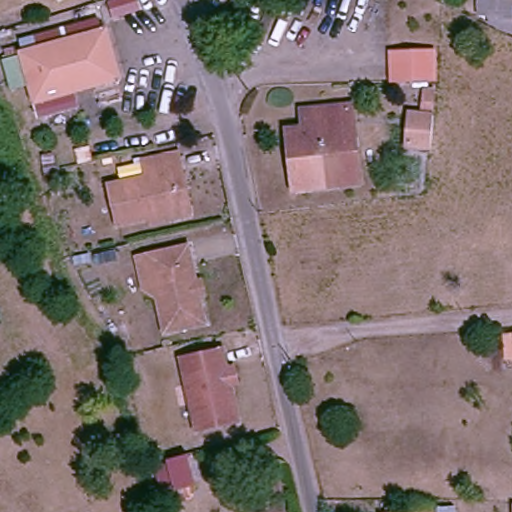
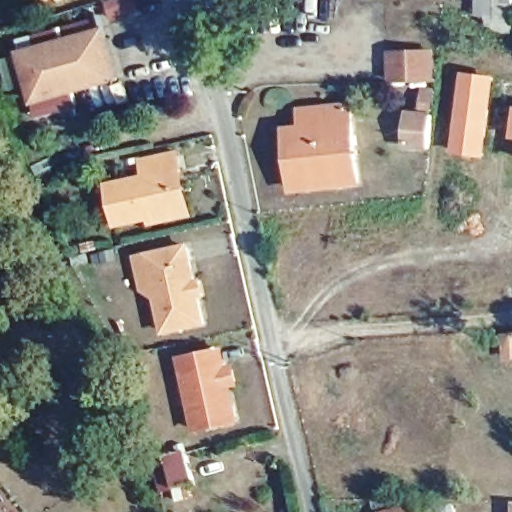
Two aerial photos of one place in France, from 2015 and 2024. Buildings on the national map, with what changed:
unchanged [(476,17),(476,0),(506,0),(506,18),(476,17)]
unchanged [(7,60),(26,55),(25,53),(27,51),(24,40),(83,24),(87,35),(109,29),(123,80),(39,103),(34,86),(15,91),(7,60)]
unchanged [(403,54),(412,54),(432,53),(432,78),(412,78),(404,78),(403,54)]
new [(460,70),(494,75),(482,158),(452,154),(460,70)]
unchanged [(409,114),(421,115),(424,90),(434,91),(431,116),(433,117),(432,125),(430,150),(406,148),(409,114)]
unchanged [(311,111),(352,106),(360,174),(303,181),(301,166),(309,165),(308,153),(316,151),(311,111)]
new [(512,139),(510,139),(512,125),(512,139)]
unchanged [(187,149),(191,164),(185,165),(195,205),(161,213),(128,220),(119,182),(156,173),(153,158),(152,156),(156,155),(187,149)]
unchanged [(191,243),(209,318),(170,328),(152,252),(191,243)]
unchanged [(512,331),(512,352),(501,353),(500,332),(512,331)]
unchanged [(242,412),(201,421),(186,350),(227,341),(234,376),(242,412)]
unchanged [(181,451),(181,452),(189,482),(170,487),(163,457),(162,456),(181,451)]
unchanged [(372,512),(404,504),(404,505),(421,501),(447,501),(449,512),(372,512)]

